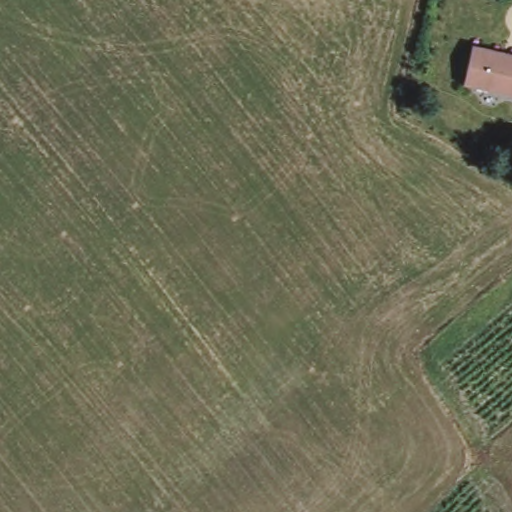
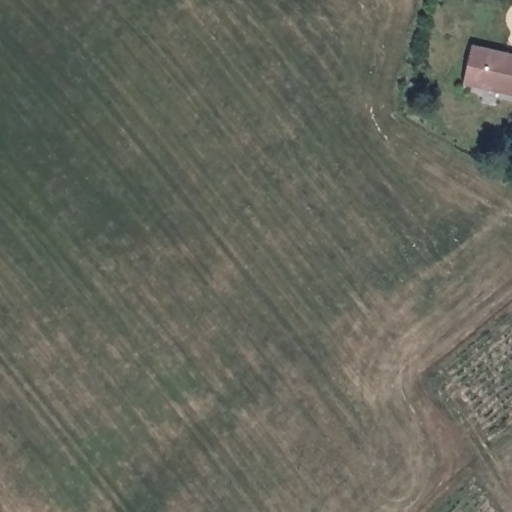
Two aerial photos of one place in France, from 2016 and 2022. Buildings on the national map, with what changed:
unchanged [(512,54),(512,94),(466,85),(475,45),(512,54)]

